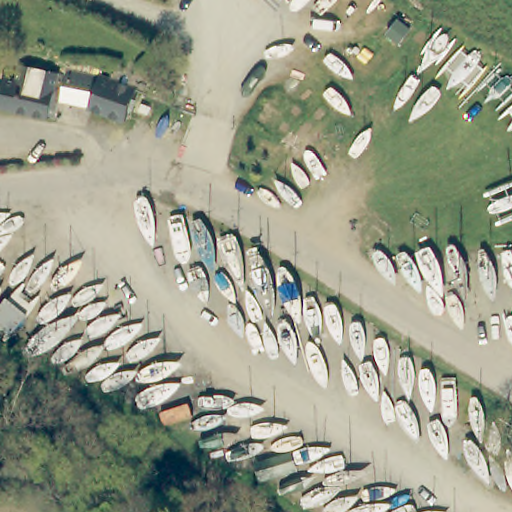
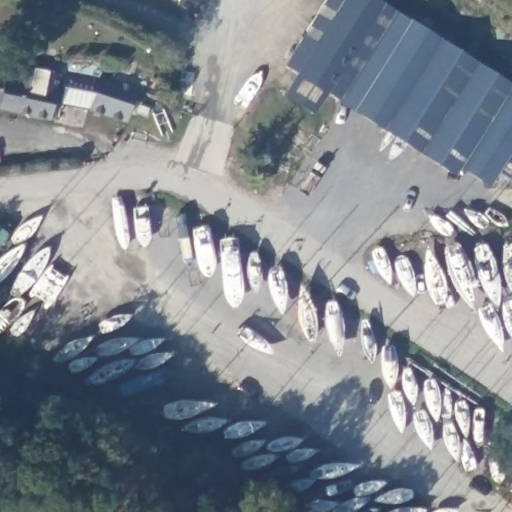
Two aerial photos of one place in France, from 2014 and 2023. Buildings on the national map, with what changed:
new [(510,160),(492,186),(460,167),(454,175),(329,92),(312,116),(281,97),(296,74),(284,66),(325,0),(383,0),(512,84),(512,161),(510,160)]
unchanged [(53,100),(48,114),(29,110),(0,103),(0,86),(1,87),(3,79),(29,86),(35,70),(50,72),(48,81),(61,85),(66,71),(74,73),(96,80),(123,89),(126,90),(124,95),(116,121),(111,119),(64,104),(53,100)]

